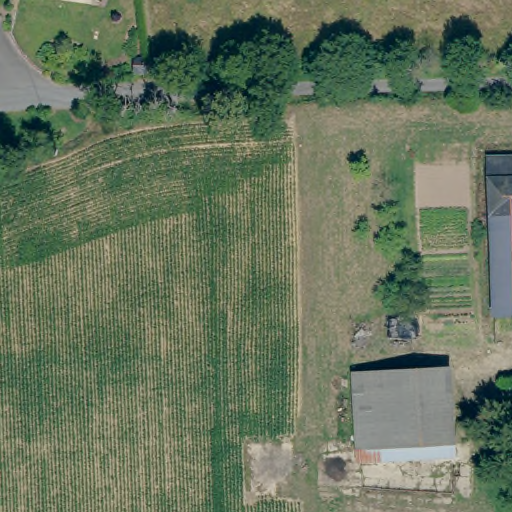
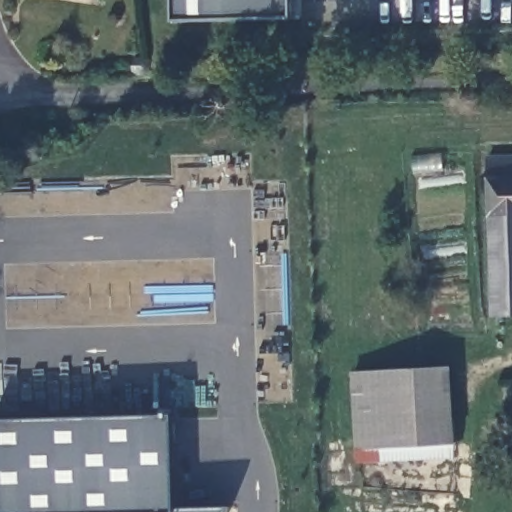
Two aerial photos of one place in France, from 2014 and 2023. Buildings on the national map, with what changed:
new [(293,18),(178,22),(177,0),(292,0),(293,18)]
unchanged [(135,61),(136,61),(140,59),(143,59),(147,60),(150,63),(151,67),(150,71),(146,74),(143,75),(140,75),(136,73),(135,73),(135,61)]
unchanged [(484,162),(512,162),(512,221),(487,221),(484,162)]
unchanged [(491,320),(487,221),(512,221),(512,320),(491,320)]
unchanged [(446,368),(451,456),(355,461),(350,373),(446,368)]
unchanged [(512,388),(512,419),(505,419),(505,388),(512,388)]
new [(177,509),(232,507),(230,512),(0,512),(0,419),(174,416),(177,509)]

